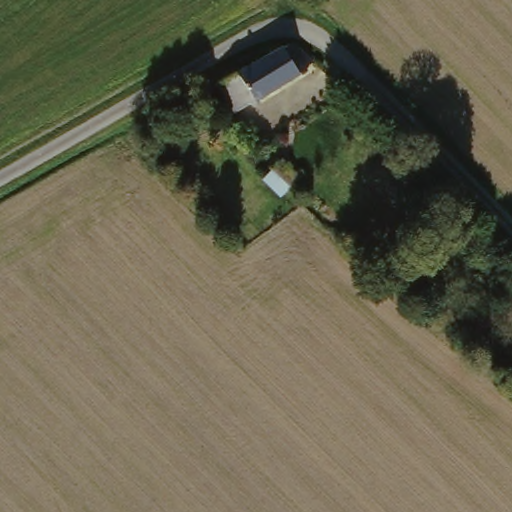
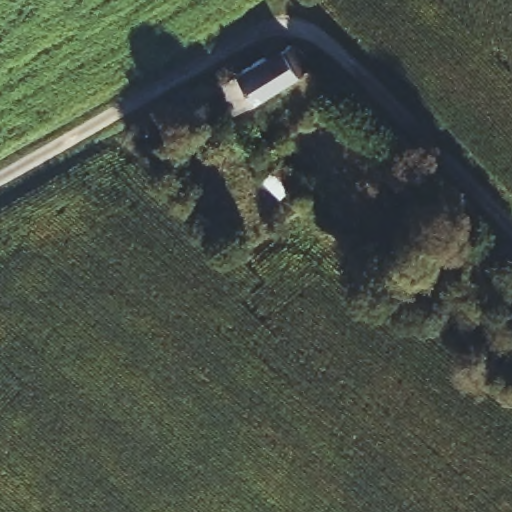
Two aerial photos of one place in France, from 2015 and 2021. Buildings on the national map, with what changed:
unchanged [(282,44),(313,64),(238,115),(216,85),(282,44)]
unchanged [(273,201),(259,180),(275,168),(282,164),(298,182),(291,187),(273,201)]

